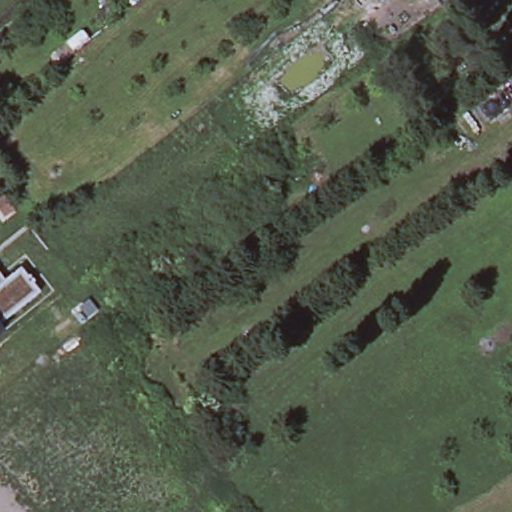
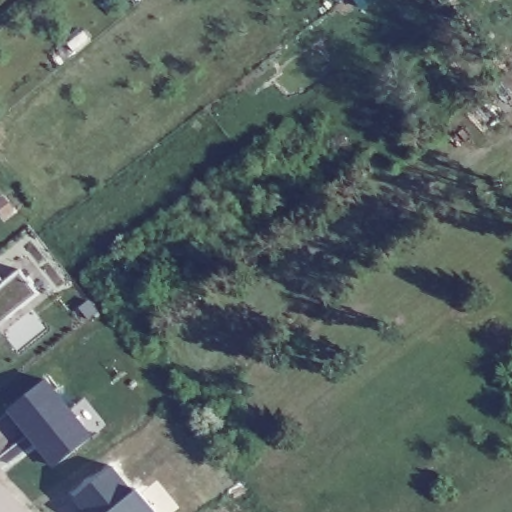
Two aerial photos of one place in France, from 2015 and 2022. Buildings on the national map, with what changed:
unchanged [(132,0),(131,1),(130,0),(132,0)]
unchanged [(2,280),(18,267),(37,292),(0,325),(0,277),(2,280)]
new [(43,383),(90,441),(55,470),(40,450),(41,448),(31,436),(30,438),(8,411),(43,383)]
new [(112,469),(133,495),(137,491),(154,512),(83,512),(73,501),(112,469)]

